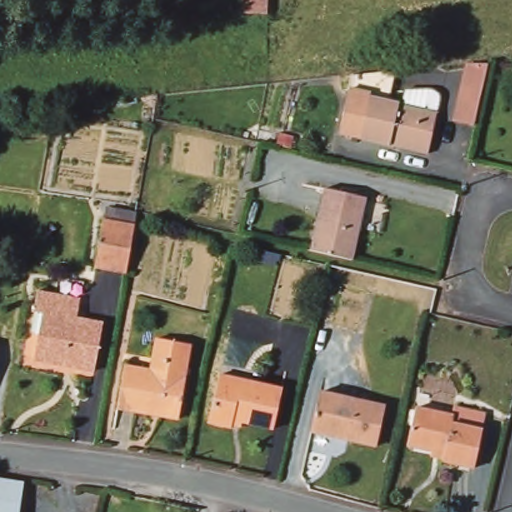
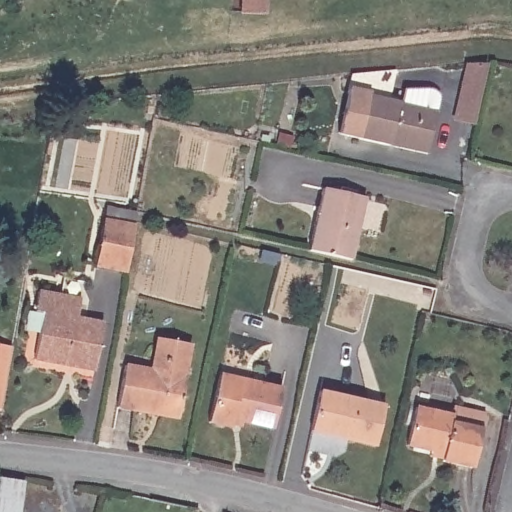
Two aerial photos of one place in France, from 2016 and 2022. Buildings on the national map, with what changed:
unchanged [(265,14),(239,13),(240,0),(266,0),(265,14)]
unchanged [(473,128),(453,124),(466,65),(487,64),(473,128)]
unchanged [(356,141),(356,139),(342,136),(351,96),(355,79),(390,75),(385,102),(435,111),(425,154),(400,149),(386,147),(356,141)]
unchanged [(311,246),(327,187),(367,197),(354,255),(311,246)]
unchanged [(92,268),(99,221),(131,227),(125,273),(92,268)]
unchanged [(40,311),(34,311),(37,288),(79,295),(76,316),(101,320),(95,367),(34,357),(40,311)]
unchanged [(177,420),(116,410),(123,367),(149,371),(155,337),(167,340),(190,343),(177,420)]
unchanged [(217,375),(281,388),(273,429),(231,421),(230,427),(208,423),(217,375)]
unchanged [(318,391),(383,403),(375,444),(310,432),(318,391)]
unchanged [(413,406),(448,414),(450,407),(482,415),(470,468),(435,459),(436,451),(403,443),(413,406)]
unchanged [(25,485),(21,512),(0,512),(0,480),(25,485)]

